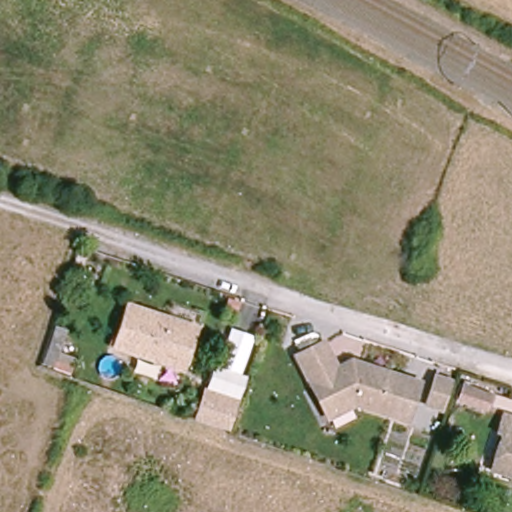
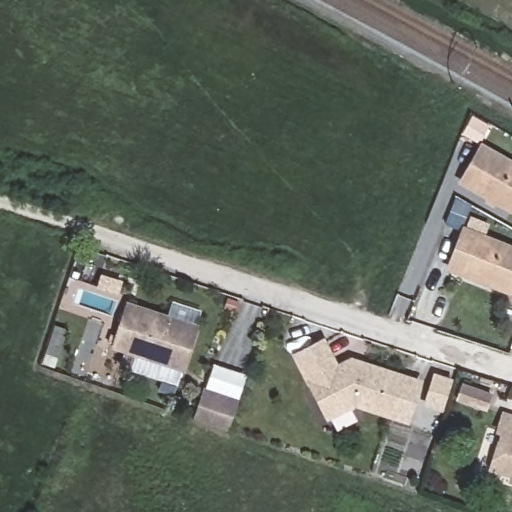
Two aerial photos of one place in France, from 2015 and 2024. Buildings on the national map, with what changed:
new [(494,206),(485,200),(486,198),(458,181),(481,142),(512,160),(512,213),(496,204),(494,206)]
new [(446,267),(461,230),(446,224),(457,198),(471,204),(462,225),(512,244),(512,294),(446,267)]
unchanged [(130,365),(134,355),(135,351),(110,343),(121,299),(152,308),(152,311),(195,322),(182,366),(177,376),(130,365)]
unchanged [(75,356),(67,376),(42,365),(55,327),(67,331),(61,350),(75,356)]
unchanged [(403,420),(389,415),(351,403),(324,416),(293,353),(320,340),(333,367),(348,359),(402,377),(416,382),(403,420)]
unchanged [(436,376),(452,381),(447,400),(444,407),(427,402),(436,376)]
unchanged [(483,404),(455,394),(459,380),(488,389),(483,404)]
unchanged [(224,427),(191,415),(200,387),(234,398),(224,427)]
unchanged [(490,456),(499,428),(495,427),(500,410),(512,415),(512,472),(496,467),(490,456)]

